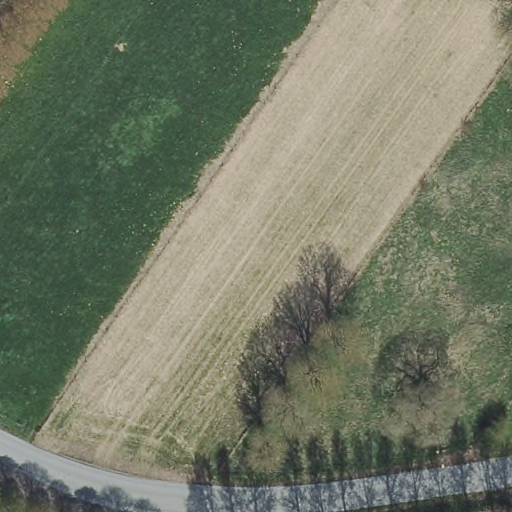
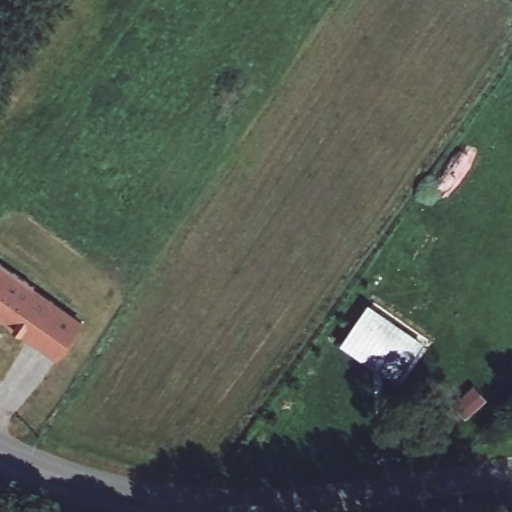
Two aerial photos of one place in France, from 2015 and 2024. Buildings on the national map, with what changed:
new [(26,330),(17,324),(14,328),(0,318),(0,262),(87,321),(60,360),(23,334),(26,330)]
new [(342,344),(371,303),(426,341),(397,382),(342,344)]

